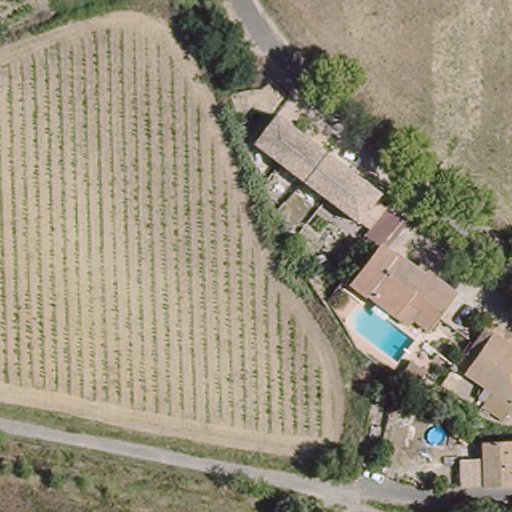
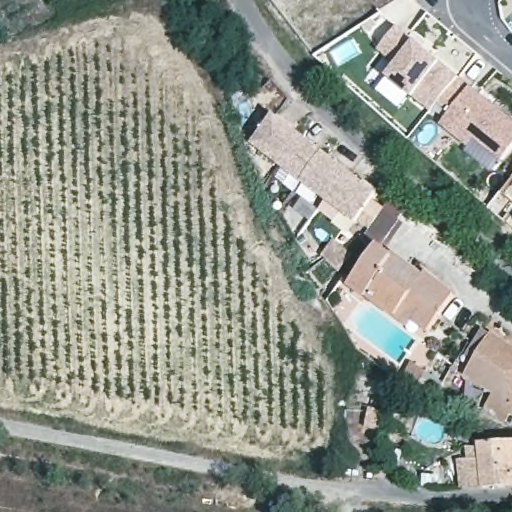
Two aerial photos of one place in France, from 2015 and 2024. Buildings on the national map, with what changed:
new [(512,120),(512,147),(502,161),(473,138),(468,147),(439,125),(449,112),(438,104),(433,111),(389,77),(397,66),(379,51),(398,27),(512,120)]
unchanged [(386,195),(366,227),(255,146),(280,114),(386,195)]
unchanged [(369,290),(364,295),(345,279),(379,239),(419,271),(431,280),(434,277),(445,284),(459,295),(432,330),(416,317),(421,310),(409,301),(400,313),(369,290)]
unchanged [(488,327),(512,344),(512,398),(509,402),(459,366),(488,327)]
unchanged [(477,436),(512,436),(512,477),(474,480),(477,436)]

